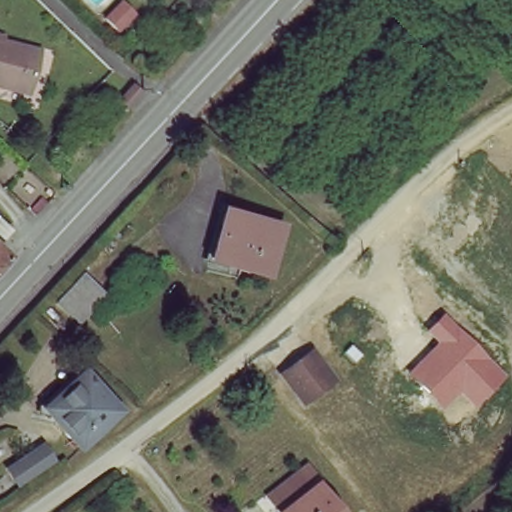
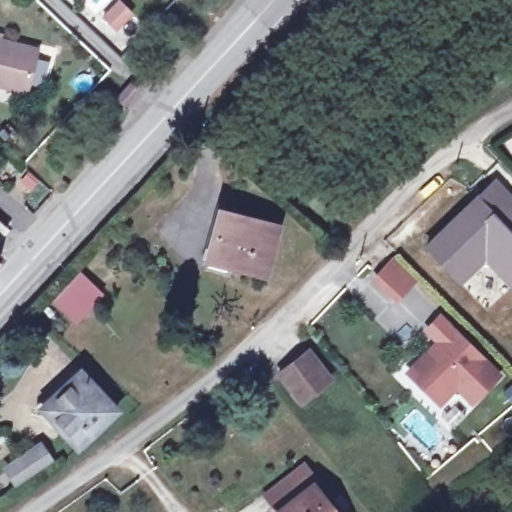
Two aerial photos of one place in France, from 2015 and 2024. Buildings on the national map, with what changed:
unchanged [(27,95),(0,88),(0,54),(34,63),(27,95)]
unchanged [(125,95),(119,88),(130,76),(137,82),(125,95)]
new [(475,195),(495,177),(512,195),(512,288),(510,289),(485,263),(460,285),(422,246),(475,195)]
unchanged [(232,261),(203,254),(215,208),(275,224),(262,275),(230,267),(232,261)]
unchanged [(0,233),(0,229),(2,231),(0,233)]
new [(392,256),(418,280),(397,303),(372,279),(392,256)]
unchanged [(77,322),(53,299),(79,272),(102,293),(77,322)]
unchanged [(508,376),(477,407),(460,390),(438,408),(406,377),(440,344),(424,329),(441,312),(508,376)]
unchanged [(307,348),(330,379),(299,407),(277,376),(307,348)]
unchanged [(78,373),(117,412),(77,448),(38,409),(78,373)]
new [(20,490),(1,467),(42,440),(57,464),(20,490)]
unchanged [(294,462),(308,483),(272,512),(256,489),(294,462)]
unchanged [(272,512),(308,483),(329,512),(272,512)]

